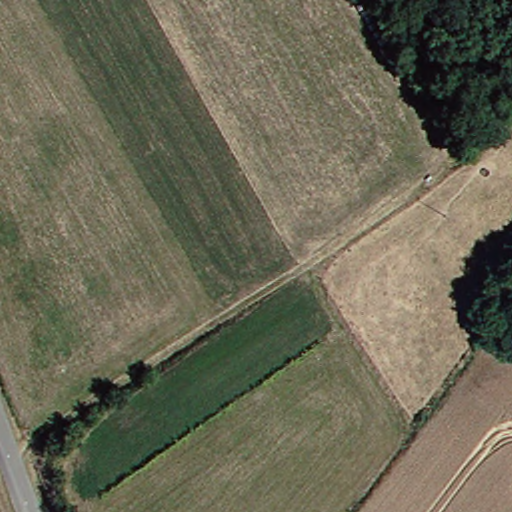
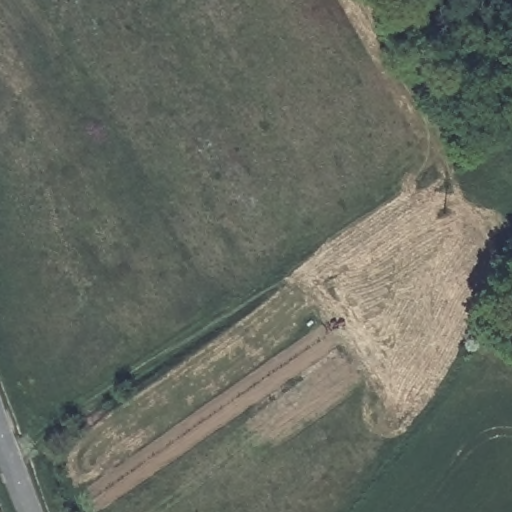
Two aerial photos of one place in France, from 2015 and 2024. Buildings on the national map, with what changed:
[]

